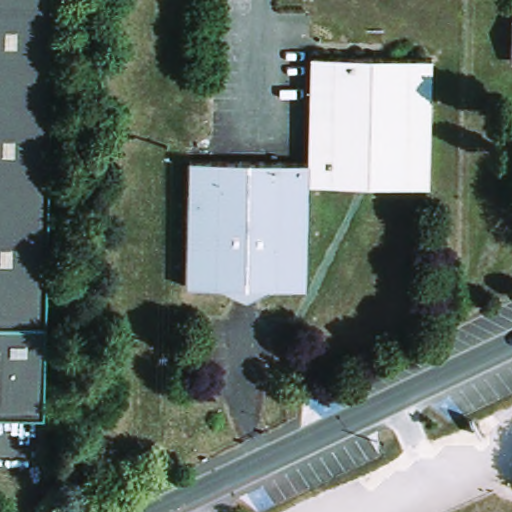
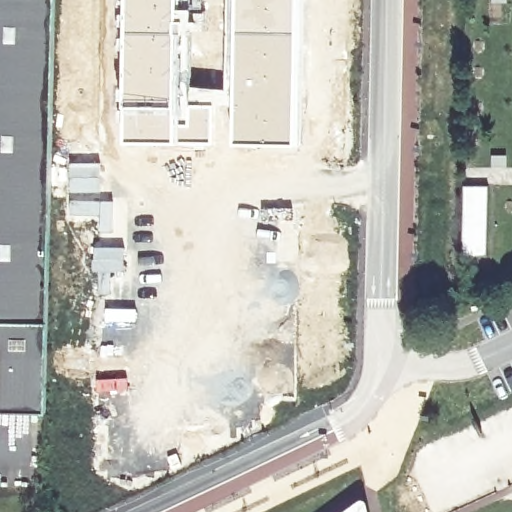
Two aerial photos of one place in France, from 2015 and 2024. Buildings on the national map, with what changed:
unchanged [(0,0),(56,0),(44,416),(0,414),(0,0)]
new [(124,0),(193,0),(193,5),(177,5),(175,98),(177,142),(122,140),(122,102),(124,0)]
new [(177,5),(193,5),(193,0),(230,0),(230,109),(226,109),(216,110),(215,142),(177,142),(175,98),(177,5)]
new [(230,109),(230,0),(299,0),(295,142),(229,142),(226,109),(230,109)]
demolished [(435,58),(432,187),(312,185),(308,288),(274,287),(262,295),(234,297),(221,286),(187,286),(190,160),(312,164),(315,56),(435,58)]
new [(67,162),(100,161),(101,191),(67,192),(67,162)]
new [(487,256),(462,255),(464,186),(489,187),(487,256)]
new [(67,198),(115,199),(116,235),(97,234),(97,218),(67,219),(67,198)]
new [(364,498),(367,502),(369,512),(340,512),(359,498),(364,498)]

